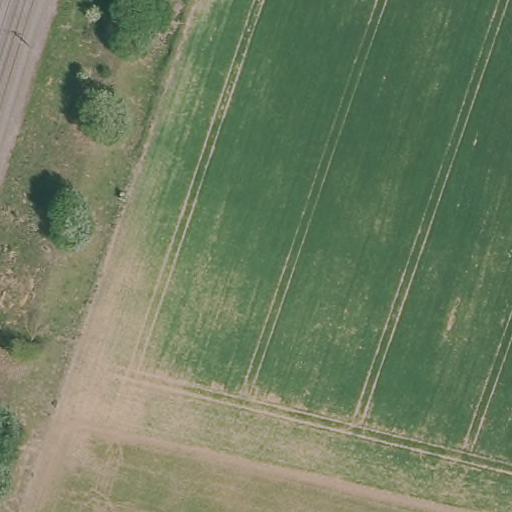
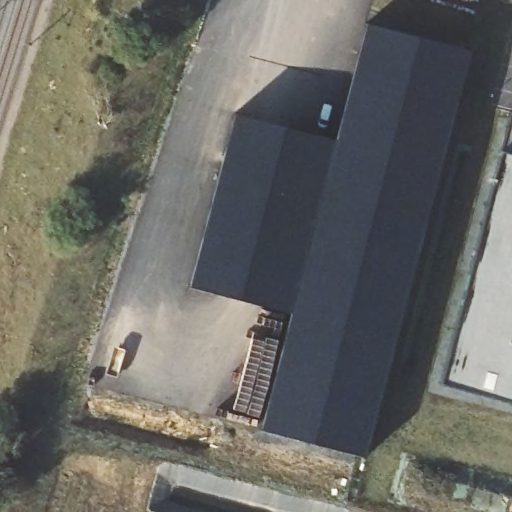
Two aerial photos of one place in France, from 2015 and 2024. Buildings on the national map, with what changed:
new [(470,49),(366,457),(259,427),(290,312),(189,286),(234,115),(334,139),(366,26),(470,49)]
unchanged [(512,112),(512,404),(438,385),(509,111),(512,112)]

